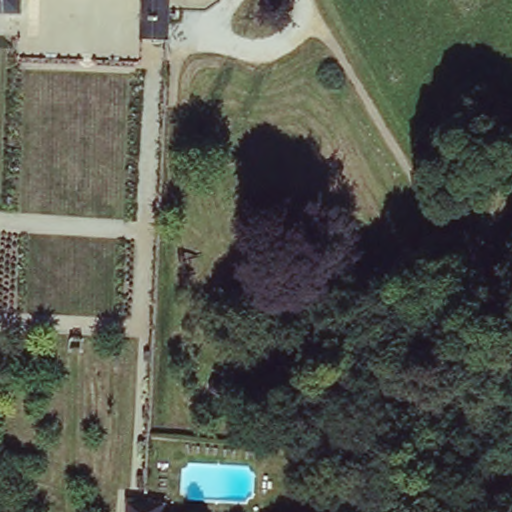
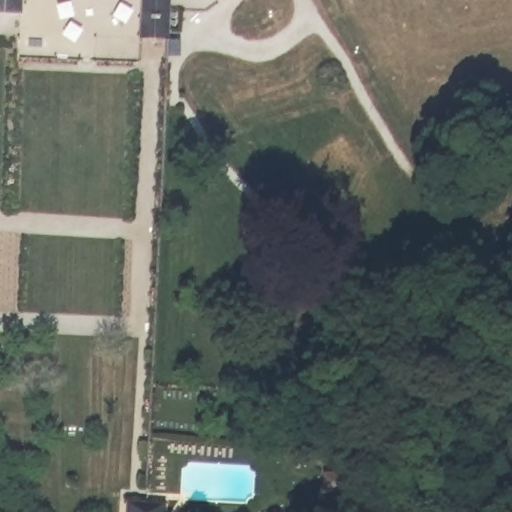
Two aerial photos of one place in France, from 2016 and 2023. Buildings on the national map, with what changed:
unchanged [(10,6),(0,6),(0,0),(10,0),(10,6)]
unchanged [(169,35),(140,33),(142,0),(170,0),(169,35)]
unchanged [(147,497),(165,498),(163,512),(128,512),(129,495),(147,497)]

